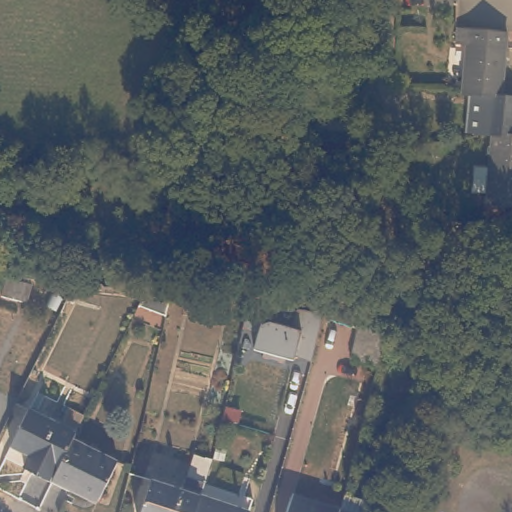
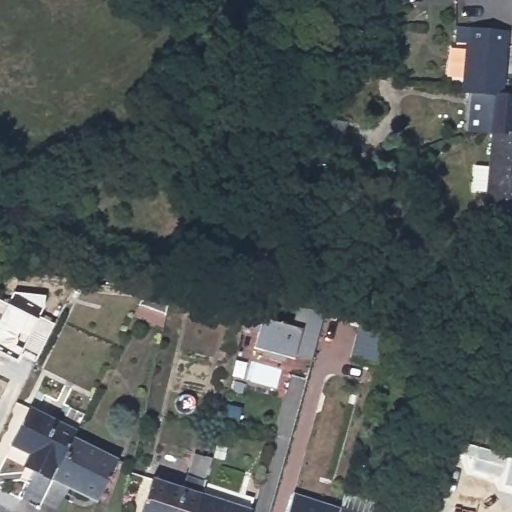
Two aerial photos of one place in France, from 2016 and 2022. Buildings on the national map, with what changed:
unchanged [(506,34),(499,98),(512,100),(512,208),(486,205),(487,195),(472,193),(474,168),(489,169),(492,136),(465,132),(469,95),(462,95),(466,46),(453,44),(456,28),(506,34)]
unchanged [(349,138),(348,159),(323,154),(323,135),(349,138)]
unchanged [(362,202),(352,205),(346,192),(357,188),(362,202)]
unchanged [(35,285),(29,303),(3,295),(8,279),(35,285)]
unchanged [(145,290),(164,294),(170,294),(165,315),(138,305),(145,290)]
unchanged [(294,354),(294,359),(254,348),(257,339),(242,334),(251,301),(275,308),(273,319),(295,325),(299,308),(325,315),(312,362),(294,354)]
unchanged [(386,329),(389,330),(379,367),(353,360),(363,324),(386,329)]
unchanged [(77,439),(56,481),(9,458),(32,409),(80,433),(77,439)]
unchanged [(77,439),(124,462),(103,504),(56,481),(77,439)]
unchanged [(214,454),(206,474),(189,469),(197,449),(214,454)]
unchanged [(194,512),(140,512),(154,473),(182,483),(187,471),(205,477),(204,479),(194,512)]
unchanged [(204,479),(252,496),(247,512),(194,512),(204,479)]
unchanged [(289,499),(327,512),(285,512),(289,499)]
unchanged [(340,499),(373,509),(372,512),(336,512),(340,499)]

